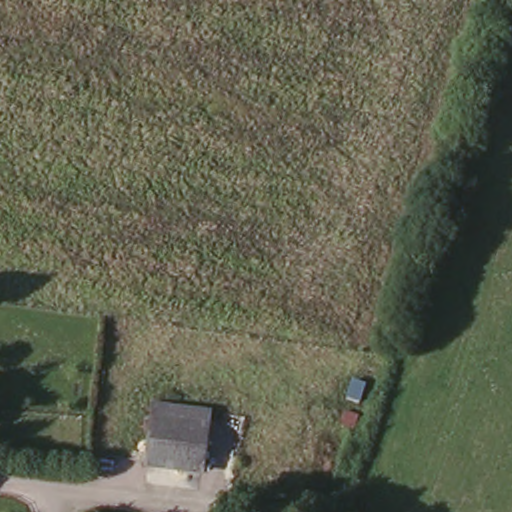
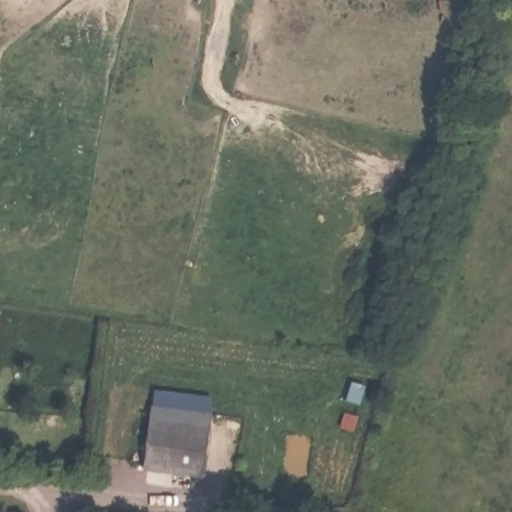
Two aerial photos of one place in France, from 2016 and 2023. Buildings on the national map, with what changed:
unchanged [(359,395),(369,398),(367,415),(357,412),(359,395)]
unchanged [(154,404),(211,410),(204,467),(150,461),(154,404)]

